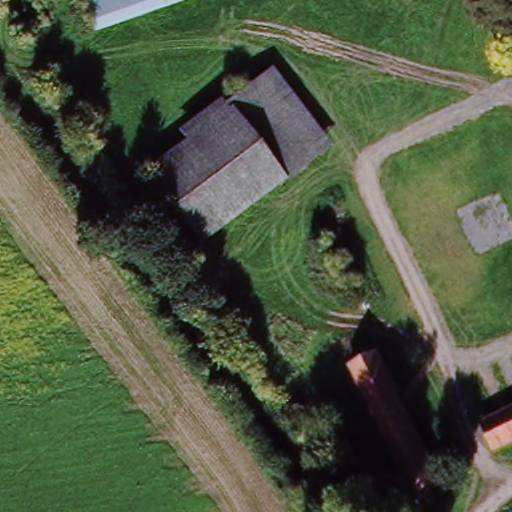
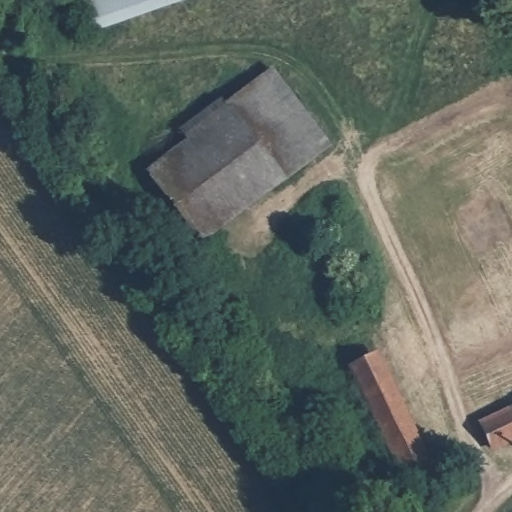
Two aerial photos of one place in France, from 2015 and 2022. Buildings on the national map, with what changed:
unchanged [(161,0),(93,25),(84,0),(161,0)]
unchanged [(277,74),(331,144),(291,175),(236,105),(277,74)]
unchanged [(208,239),(152,169),(236,105),(291,175),(208,239)]
unchanged [(418,493),(363,390),(350,366),(374,354),(387,378),(442,480),(418,493)]
unchanged [(492,448),(478,418),(512,403),(512,438),(492,448)]

